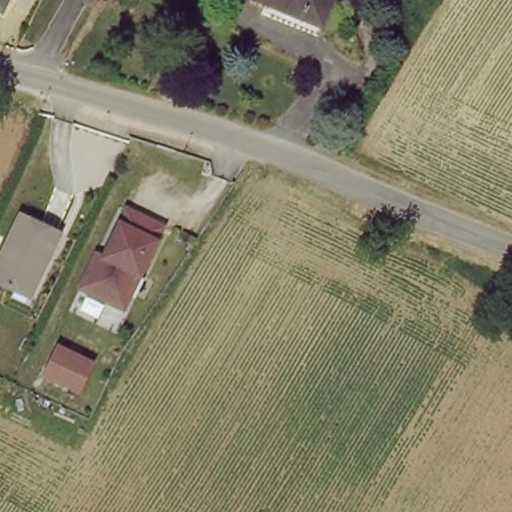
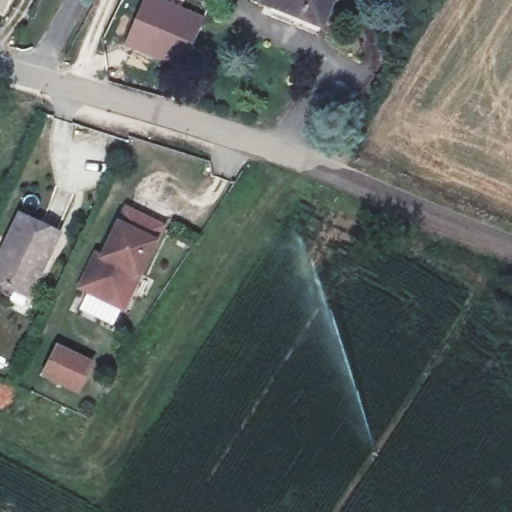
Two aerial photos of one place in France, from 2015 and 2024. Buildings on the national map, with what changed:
unchanged [(0,0),(5,0),(0,10),(0,0)]
new [(162,0),(204,18),(183,70),(123,47),(143,0),(162,0)]
unchanged [(280,11),(285,0),(334,0),(320,29),(280,11)]
unchanged [(99,254),(106,256),(129,211),(164,228),(122,311),(89,293),(82,290),(99,254)]
unchanged [(0,284),(0,268),(24,220),(63,239),(39,285),(33,299),(18,292),(0,284)]
unchanged [(84,364),(70,393),(37,376),(51,348),(84,364)]

